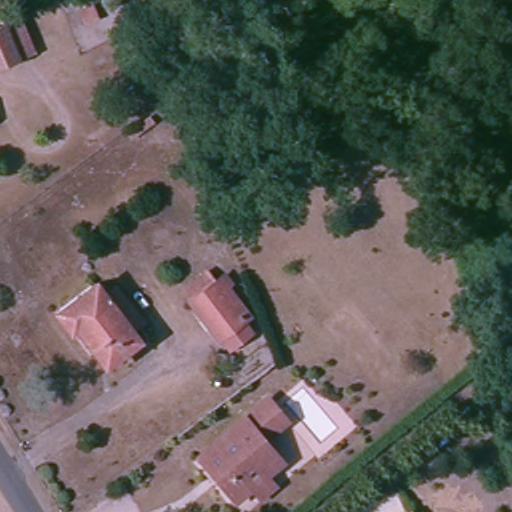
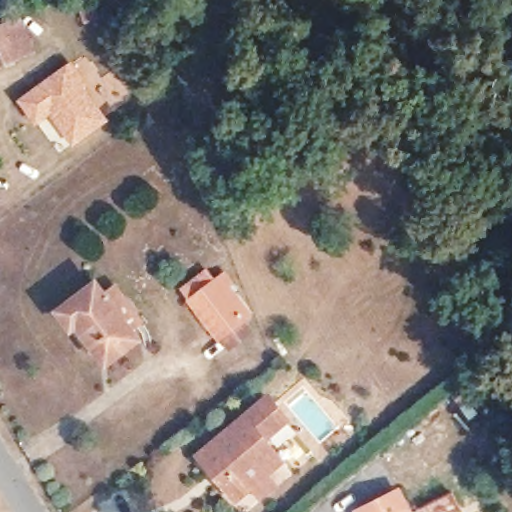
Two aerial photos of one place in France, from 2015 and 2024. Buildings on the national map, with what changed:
unchanged [(23,57),(2,69),(0,65),(0,27),(5,24),(23,57)]
new [(91,84),(85,88),(107,123),(72,146),(51,116),(36,126),(17,101),(74,61),(91,84)]
unchanged [(250,321),(222,344),(193,305),(225,280),(232,290),(225,295),(242,317),(245,315),(250,321)]
unchanged [(141,341),(107,368),(95,352),(99,349),(82,329),(75,335),(60,316),(82,298),(97,286),(141,341)]
unchanged [(262,498),(253,488),(239,502),(222,484),(213,474),(201,460),(267,399),(289,422),(268,442),(283,459),(268,474),(277,484),(262,498)]

